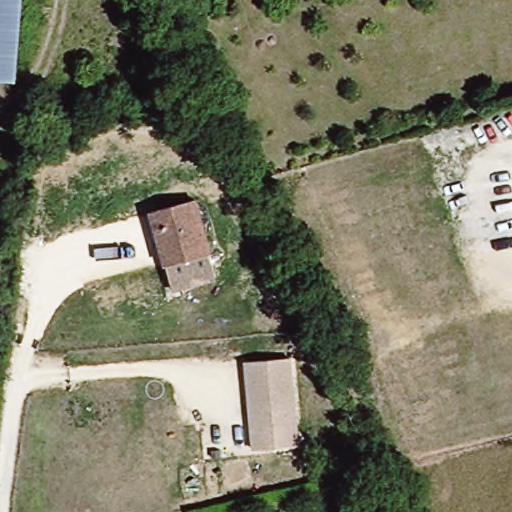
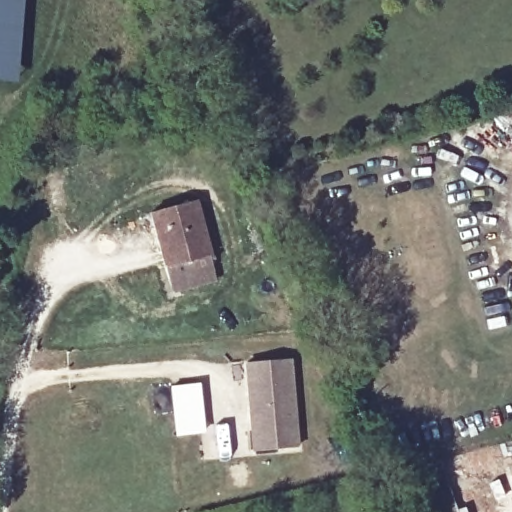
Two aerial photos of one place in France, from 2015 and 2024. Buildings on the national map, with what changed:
unchanged [(0,78),(0,0),(25,0),(19,80),(0,78)]
unchanged [(149,218),(193,205),(209,260),(164,272),(149,218)]
unchanged [(209,260),(215,281),(170,293),(164,272),(209,260)]
unchanged [(250,436),(244,367),(287,363),(296,451),(276,453),(252,455),(250,436)]
new [(197,385),(201,433),(175,436),(171,388),(197,385)]

